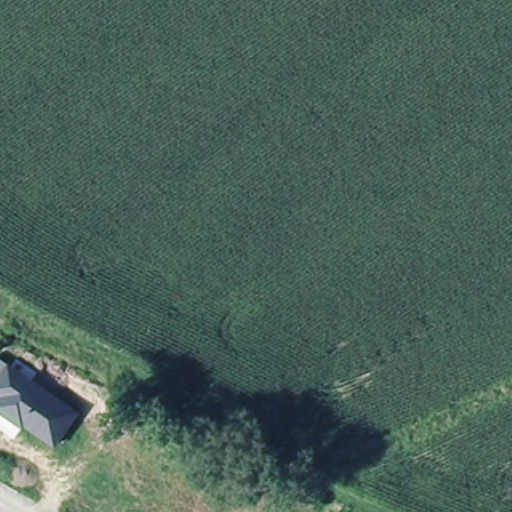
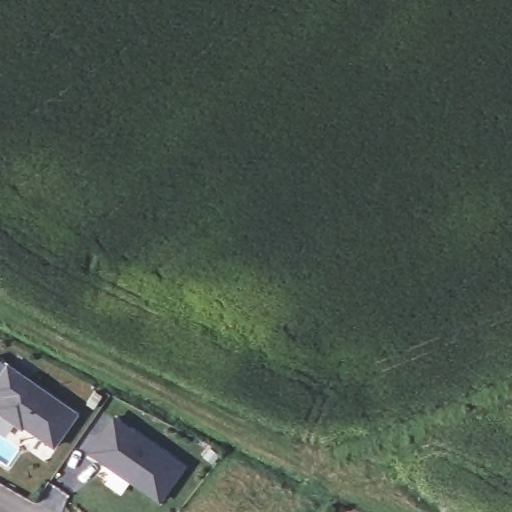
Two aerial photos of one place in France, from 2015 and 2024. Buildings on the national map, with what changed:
unchanged [(21,433),(19,436),(0,423),(0,370),(74,422),(51,455),(21,433)]
new [(180,473),(156,507),(86,458),(109,425),(180,473)]

